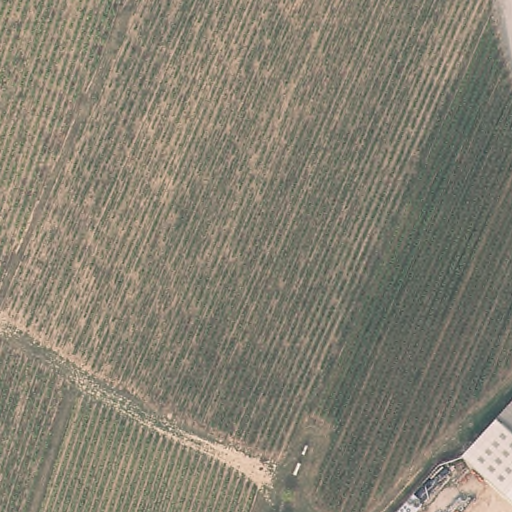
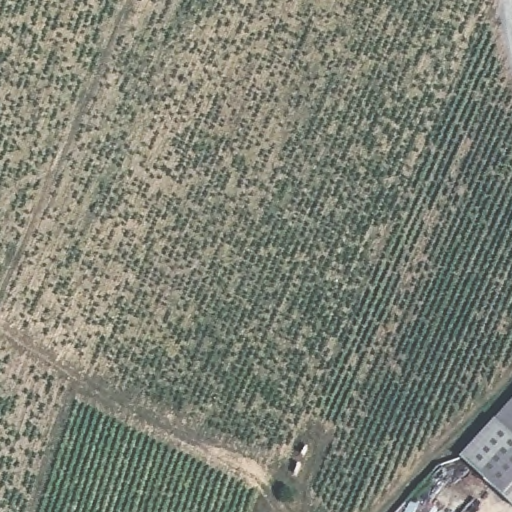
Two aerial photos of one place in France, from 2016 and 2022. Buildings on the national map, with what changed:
unchanged [(496,418),(512,402),(512,504),(461,457),(496,418)]

